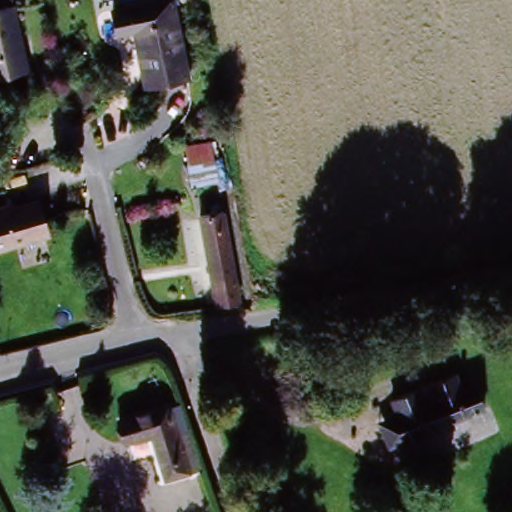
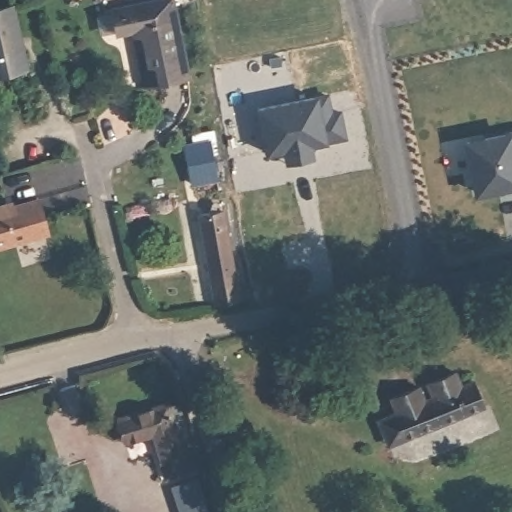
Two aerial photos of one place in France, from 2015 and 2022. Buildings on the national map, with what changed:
unchanged [(174,0),(189,71),(147,81),(136,30),(119,33),(114,9),(153,0),(174,0)]
unchanged [(12,6),(28,71),(0,77),(0,9),(12,6)]
new [(325,94),(330,117),(340,114),(345,137),(310,145),(313,159),(288,164),(285,149),(268,152),(258,110),(325,94)]
new [(512,132),(512,189),(475,197),(463,141),(511,132),(512,132)]
unchanged [(191,187),(185,146),(213,142),(220,183),(191,187)]
unchanged [(36,199),(47,237),(0,251),(0,210),(36,199)]
unchanged [(217,302),(201,218),(222,214),(240,297),(217,302)]
unchanged [(397,417),(400,416),(394,400),(421,390),(427,405),(438,401),(433,385),(460,373),(466,390),(475,387),(484,411),(408,442),(390,450),(380,423),(397,417)]
unchanged [(150,436),(121,446),(114,425),(164,407),(171,428),(150,436)]
unchanged [(165,482),(150,436),(171,428),(174,437),(183,433),(196,471),(187,474),(165,482)]

